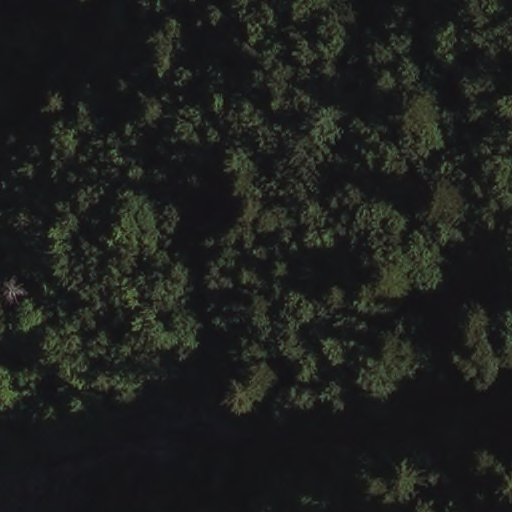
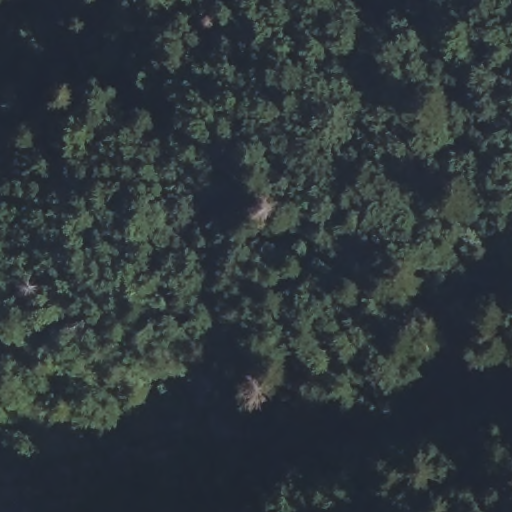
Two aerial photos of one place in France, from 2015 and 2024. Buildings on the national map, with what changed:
[]

